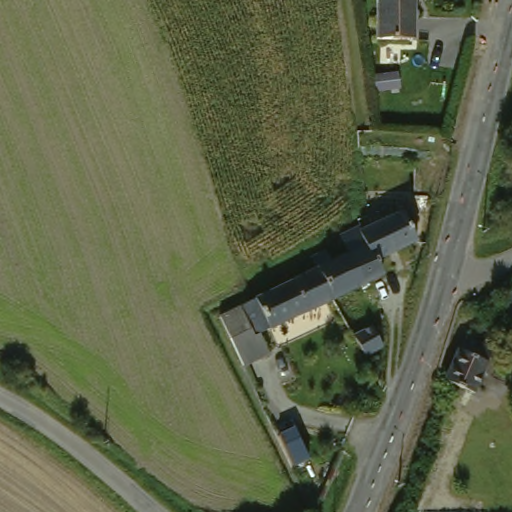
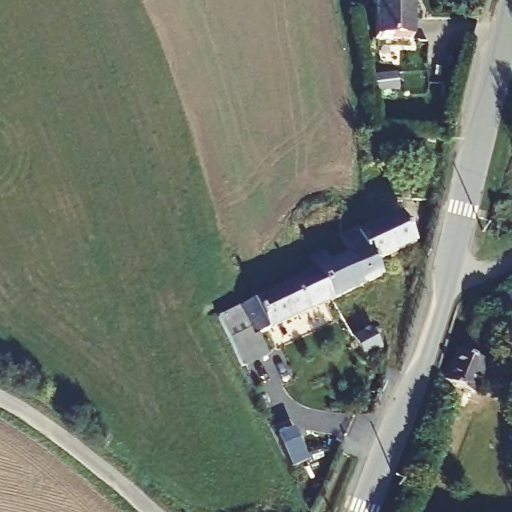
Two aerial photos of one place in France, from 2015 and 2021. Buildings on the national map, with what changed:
unchanged [(407,39),(382,39),(381,0),(410,0),(411,38),(407,39)]
unchanged [(406,74),(407,91),(382,94),(380,77),(406,74)]
unchanged [(333,244),(338,257),(357,249),(350,235),(362,229),(363,229),(363,230),(371,226),(368,220),(367,217),(378,212),(386,208),(387,205),(383,196),(383,191),(434,193),(437,194),(435,205),(430,223),(427,230),(419,237),(380,257),(383,267),(369,275),(340,288),(327,261),(322,249),(333,244)]
unchanged [(224,312),(296,276),(327,261),(340,288),(256,328),(266,349),(247,358),(234,332),(224,312)]
unchanged [(509,285),(512,284),(512,290),(509,285)]
unchanged [(357,330),(374,322),(381,334),(381,339),(367,346),(357,330)]
unchanged [(461,341),(463,342),(470,330),(475,333),(480,336),(475,348),(486,354),(472,385),(470,384),(447,374),(461,341)]
unchanged [(291,468),(273,432),(294,424),(309,458),(291,468)]

